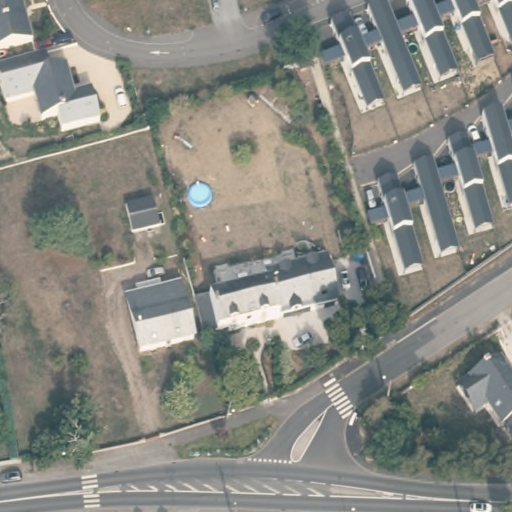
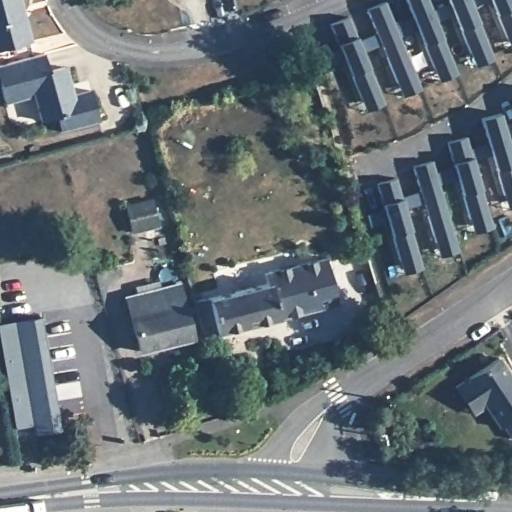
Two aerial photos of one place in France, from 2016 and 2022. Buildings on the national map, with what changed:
unchanged [(32,41),(0,50),(0,0),(21,0),(29,30),(32,41)]
unchanged [(480,24),(495,61),(477,67),(460,31),(453,14),(435,21),(441,35),(457,76),(441,81),(423,43),(418,29),(399,36),(420,91),(401,98),(382,46),(363,53),(368,69),(383,105),(367,111),(350,74),(345,61),(321,70),(317,59),(339,48),(330,27),(347,21),(355,39),(377,31),(369,12),(386,6),(395,26),(412,19),(404,0),(424,0),(430,13),(448,2),(448,0),(491,0),(471,6),(480,24)]
unchanged [(497,15),(491,0),(512,0),(512,46),(497,15)]
unchanged [(50,71),(66,68),(75,94),(91,90),(98,119),(61,129),(59,118),(41,120),(32,95),(4,102),(0,87),(0,66),(45,54),(50,71)]
unchanged [(508,138),(512,156),(512,208),(510,208),(497,169),(493,157),(473,161),(481,190),(492,230),(474,235),(462,197),(458,181),(438,185),(458,253),(441,257),(426,204),(405,209),(410,230),(422,269),(405,274),(392,237),(387,222),(369,227),(366,214),(384,209),(378,184),(396,180),(401,195),(421,190),(416,168),(431,164),(435,172),(455,166),(449,144),(467,139),(470,148),(490,144),(484,121),(500,118),(504,125),(512,123),(512,137),(508,138)]
unchanged [(160,225),(132,231),(127,205),(155,199),(160,225)]
unchanged [(374,274),(361,278),(355,250),(366,248),(374,274)]
unchanged [(340,304),(206,334),(197,300),(268,284),(266,274),(328,258),(340,304)]
unchanged [(141,351),(127,298),(140,295),(136,286),(161,280),(164,289),(181,284),(195,337),(141,351)]
unchanged [(391,332),(382,338),(366,292),(378,289),(391,332)]
new [(32,427),(15,429),(0,344),(0,324),(43,317),(64,429),(34,436),(32,427)]
unchanged [(512,372),(512,433),(505,423),(502,424),(488,403),(475,411),(458,383),(471,375),(501,356),(512,372)]

